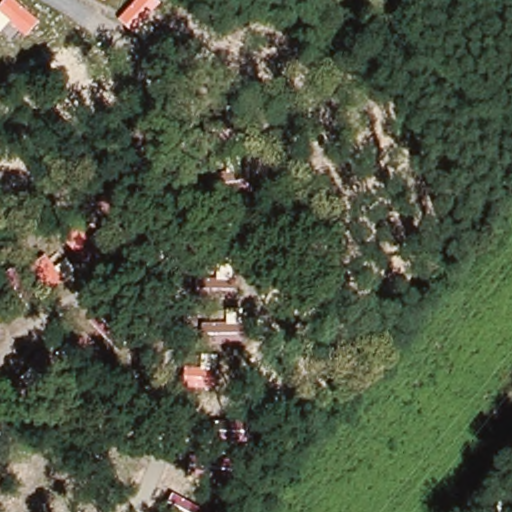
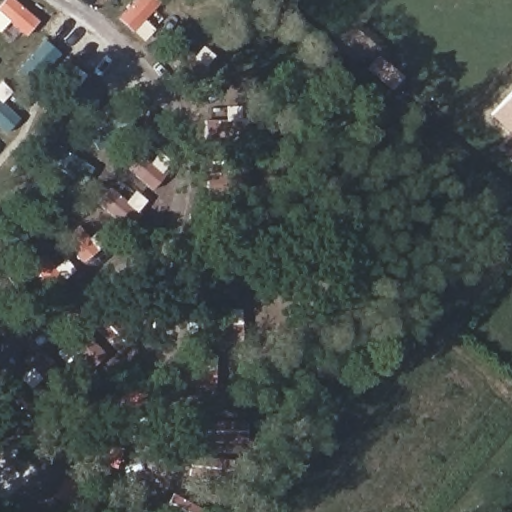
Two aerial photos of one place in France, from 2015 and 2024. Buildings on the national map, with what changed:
unchanged [(37,22),(23,36),(10,24),(0,33),(0,6),(5,0),(14,0),(37,22)]
unchanged [(104,1),(103,0),(105,0),(104,1)]
unchanged [(136,0),(148,0),(155,4),(145,21),(157,27),(149,41),(121,22),(136,0)]
new [(490,117),(512,93),(512,137),(490,117)]

